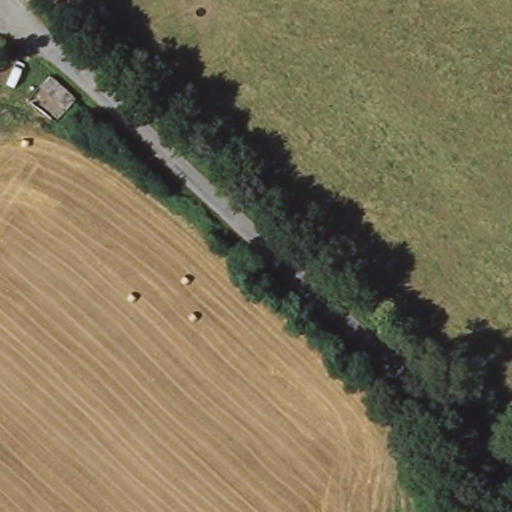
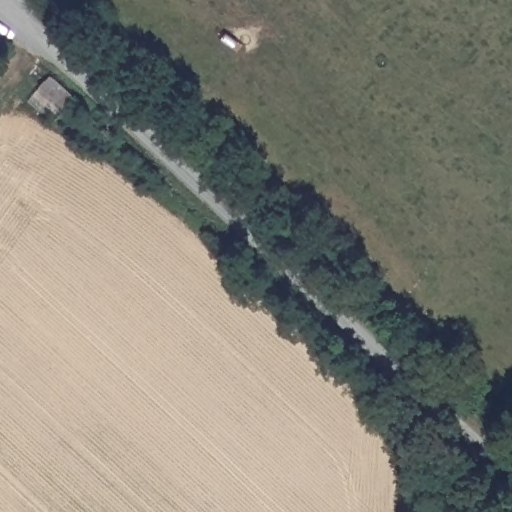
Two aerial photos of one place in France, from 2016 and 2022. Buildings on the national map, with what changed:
unchanged [(50,70),(75,95),(75,96),(66,105),(40,81),(49,72),(50,70)]

